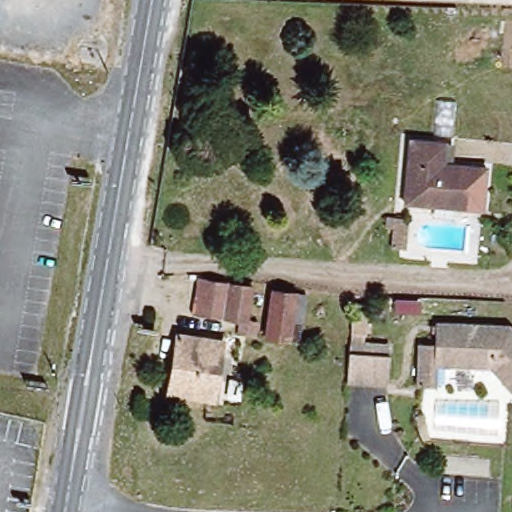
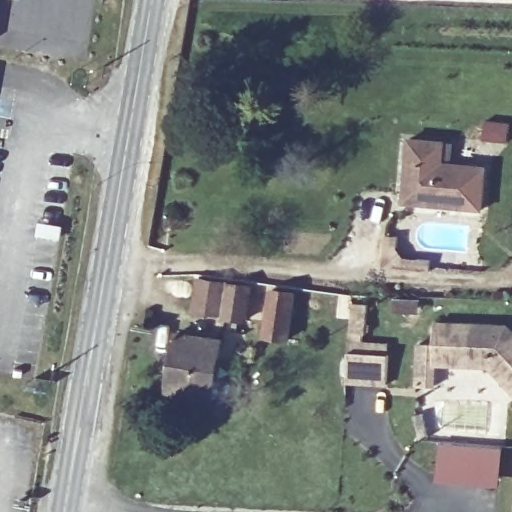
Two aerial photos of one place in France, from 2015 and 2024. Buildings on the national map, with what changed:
unchanged [(476,205),(407,202),(410,144),(440,145),(441,166),(477,167),(476,205)]
unchanged [(416,210),(415,238),(397,238),(399,208),(416,210)]
unchanged [(262,285),(255,329),(232,326),(232,315),(188,308),(192,277),(262,285)]
unchanged [(295,293),(289,338),(267,336),(274,291),(295,293)]
unchanged [(419,383),(422,341),(437,342),(438,321),(496,325),(496,328),(512,329),(512,387),(492,364),(436,361),(434,384),(419,383)]
unchanged [(221,337),(212,396),(168,390),(178,332),(221,337)]
unchanged [(386,378),(362,377),(346,376),(347,346),(364,347),(387,348),(386,378)]
new [(439,441),(504,447),(499,488),(434,482),(439,441)]

